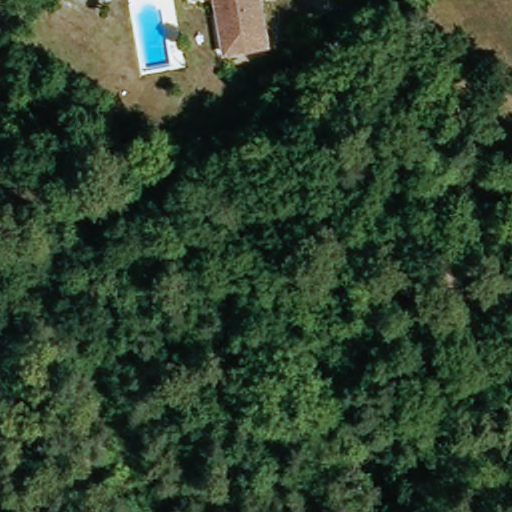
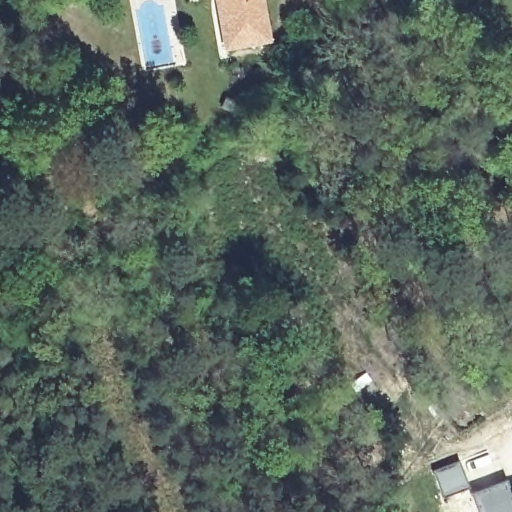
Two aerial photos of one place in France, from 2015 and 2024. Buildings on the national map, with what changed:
unchanged [(199,2),(199,0),(216,0),(199,2)]
unchanged [(273,49),(231,55),(220,0),(264,0),(273,49)]
new [(458,462),(469,490),(442,500),(431,472),(458,462)]
new [(510,493),(512,493),(512,512),(477,512),(471,495),(506,481),(510,493)]

